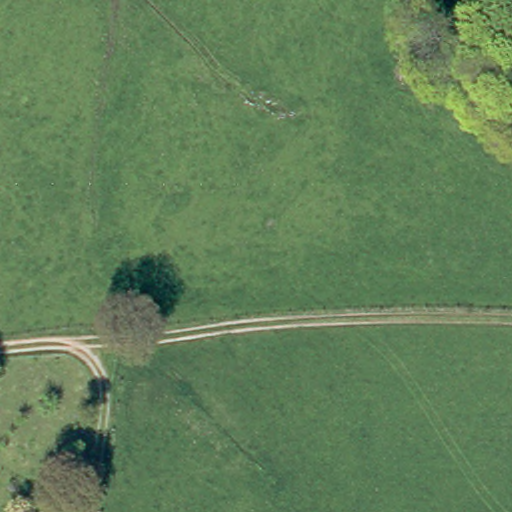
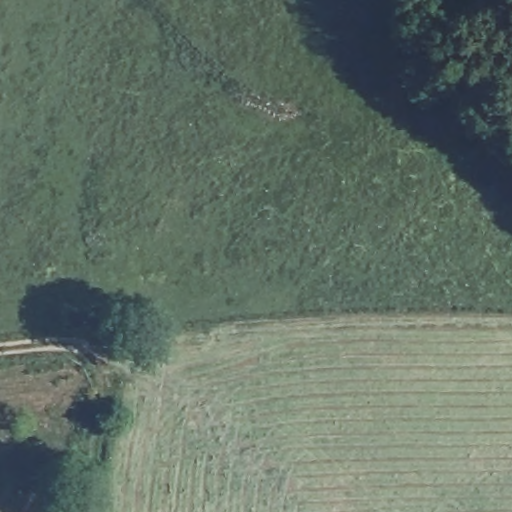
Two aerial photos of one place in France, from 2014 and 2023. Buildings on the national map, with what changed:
[]

